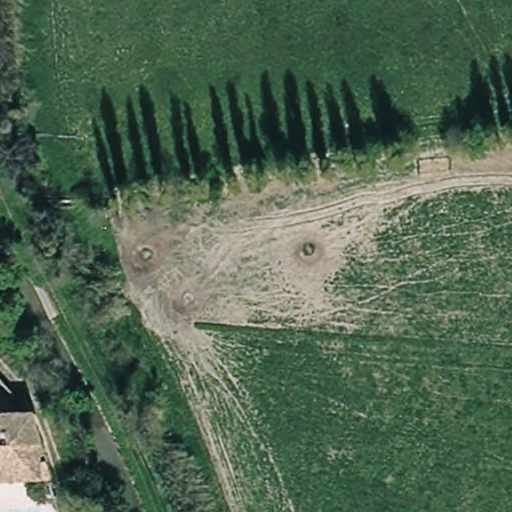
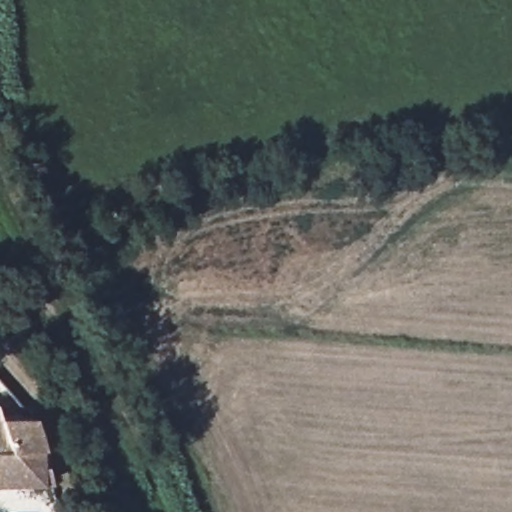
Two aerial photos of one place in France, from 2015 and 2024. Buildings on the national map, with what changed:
unchanged [(9,413),(37,411),(57,476),(0,480),(0,403),(3,403),(9,413)]

